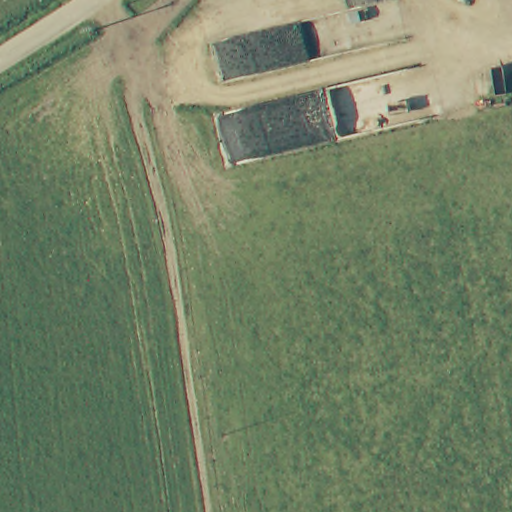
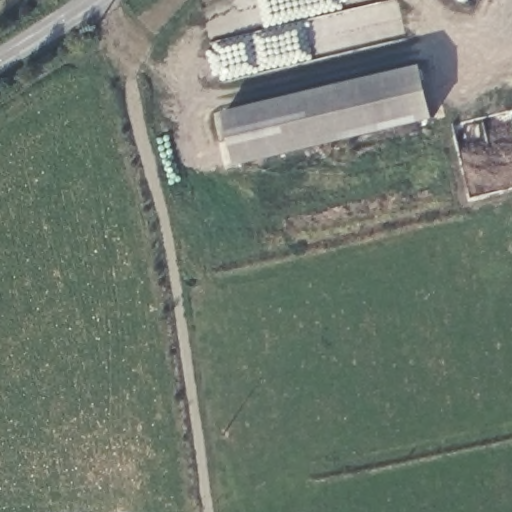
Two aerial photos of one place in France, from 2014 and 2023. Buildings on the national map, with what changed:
new [(222,111),(419,64),(432,120),(238,166),(222,111)]

